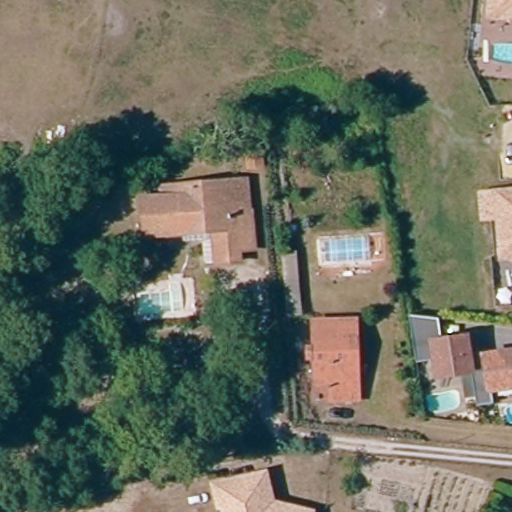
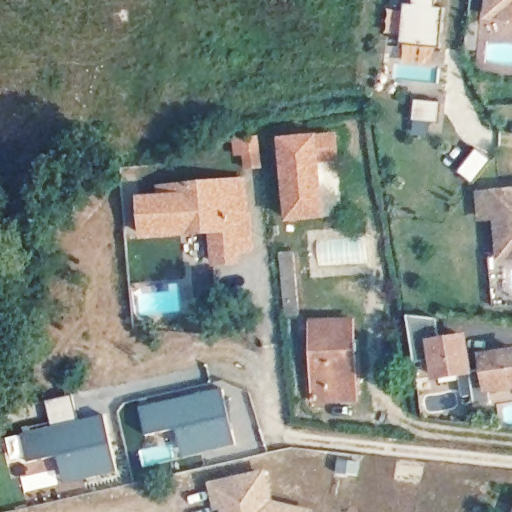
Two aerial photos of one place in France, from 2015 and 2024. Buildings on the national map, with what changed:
new [(415,4),(415,0),(438,0),(437,6),(446,7),(442,47),(402,43),(406,3),(415,4)]
unchanged [(491,0),(512,0),(512,15),(507,14),(490,13),(491,0)]
new [(337,131),(340,161),(321,163),(327,219),(285,223),(277,137),(337,131)]
unchanged [(257,166),(247,167),(245,155),(235,155),(234,141),(244,141),(255,140),(257,166)]
unchanged [(175,226),(160,228),(160,235),(137,237),(134,201),(153,200),(153,190),(237,183),(239,214),(244,214),(247,253),(232,254),(232,262),(208,264),(205,240),(176,242),(175,226)]
unchanged [(102,201),(81,223),(67,209),(87,188),(102,201)]
unchanged [(496,191),(512,190),(512,252),(501,254),(496,191)]
unchanged [(297,317),(284,317),(280,250),(291,249),(297,317)]
unchanged [(490,392),(493,401),(480,404),(476,373),(436,380),(433,358),(417,360),(410,314),(441,317),(446,336),(472,331),(476,352),(512,346),(512,388),(490,392)]
unchanged [(350,399),(309,400),(307,323),(347,322),(347,339),(348,383),(350,399)]
new [(201,452),(197,426),(147,437),(142,409),(224,389),(238,446),(201,452)]
new [(85,481),(79,452),(29,463),(23,434),(107,417),(120,473),(85,481)]
unchanged [(223,510),(216,511),(210,481),(268,469),(276,500),(316,510),(315,512),(223,512),(223,510)]

